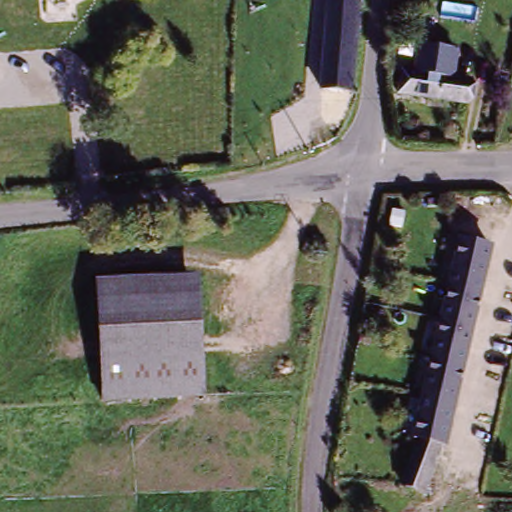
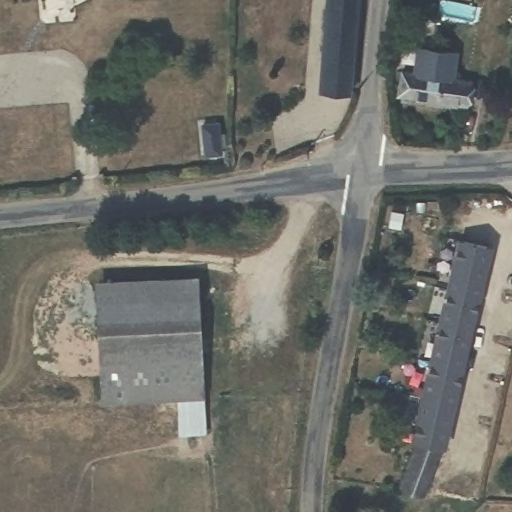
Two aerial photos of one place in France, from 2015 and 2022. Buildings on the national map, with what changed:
unchanged [(319,92),(324,0),(358,0),(352,95),(319,92)]
unchanged [(427,75),(429,47),(469,49),(467,76),(427,75)]
unchanged [(413,101),(415,74),(427,75),(467,76),(482,77),(480,105),(413,101)]
unchanged [(429,273),(437,234),(462,238),(455,278),(429,273)]
unchanged [(492,244),(479,306),(465,373),(459,405),(452,436),(434,493),(408,486),(432,391),(455,278),(462,238),(492,244)]
unchanged [(102,285),(187,278),(200,279),(205,380),(109,385),(104,328),(102,285)]

